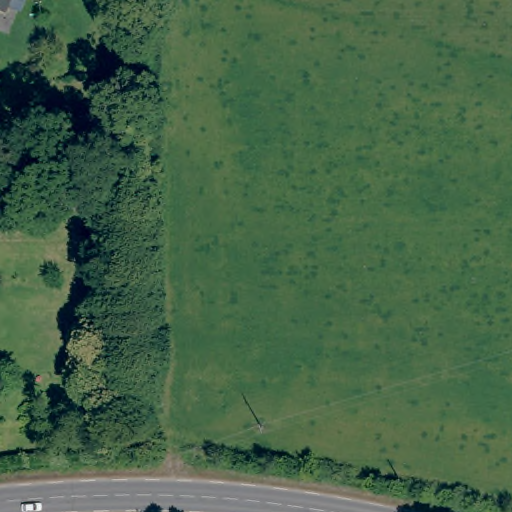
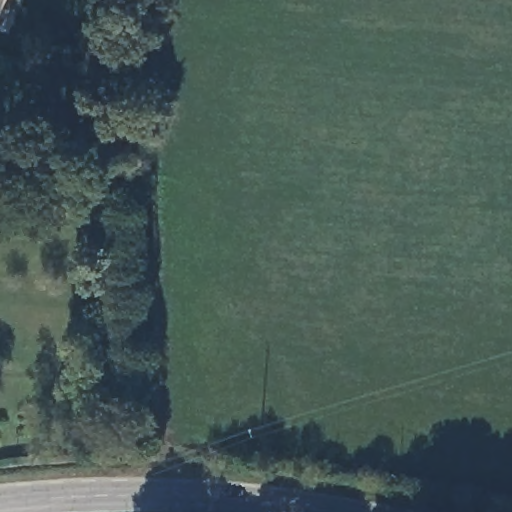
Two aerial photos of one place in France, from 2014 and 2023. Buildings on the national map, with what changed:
unchanged [(0,0),(6,0),(1,12),(0,11),(0,0)]

